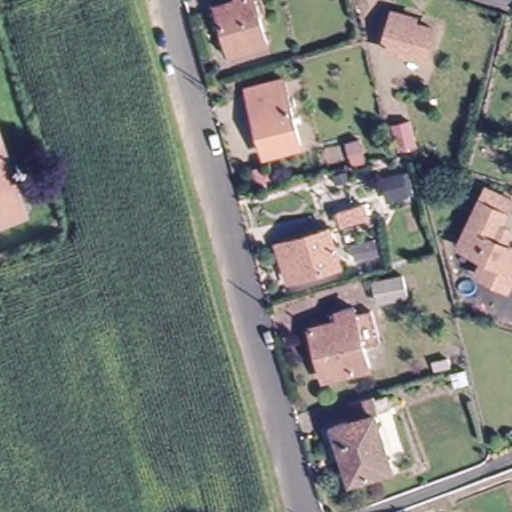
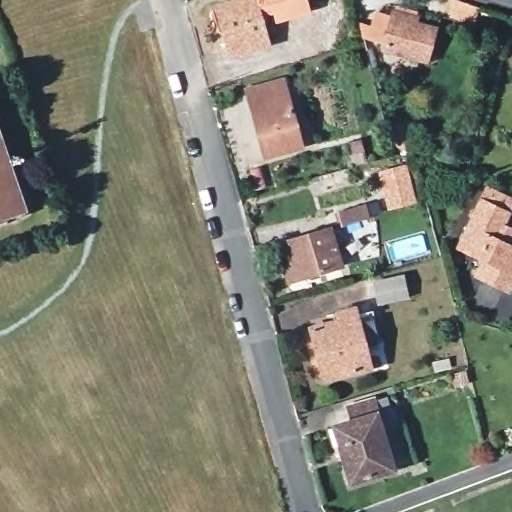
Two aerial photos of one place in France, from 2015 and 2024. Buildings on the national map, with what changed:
unchanged [(217,7),(238,1),(238,0),(255,0),(268,45),(231,56),(217,7)]
new [(262,26),(255,0),(306,0),(310,14),(262,26)]
unchanged [(385,47),(393,13),(415,18),(413,24),(433,29),(426,60),(407,55),(384,49),(385,47)]
unchanged [(265,156),(254,115),(246,89),(269,83),(282,79),(301,146),(265,156)]
unchanged [(417,146),(398,150),(392,126),(411,122),(417,146)]
unchanged [(21,208),(0,216),(0,148),(21,208)]
unchanged [(267,187),(255,190),(250,170),(261,167),(267,187)]
unchanged [(409,197),(391,201),(385,177),(403,173),(409,197)]
unchanged [(512,288),(508,295),(477,280),(485,265),(459,252),(487,193),(512,206),(512,210),(501,231),(512,236),(512,237),(505,250),(512,253),(512,288)]
unchanged [(363,205),(368,219),(342,226),(337,212),(363,205)]
unchanged [(340,265),(288,280),(278,245),(328,230),(334,247),(342,245),(345,252),(348,263),(340,265)]
unchanged [(403,274),(407,296),(377,303),(373,281),(403,274)]
unchanged [(340,321),(338,313),(354,309),(356,316),(372,312),(380,343),(364,348),(369,368),(325,379),(311,329),(340,321)]
unchanged [(450,367),(435,371),(433,363),(447,360),(450,367)]
unchanged [(451,375),(465,371),(469,384),(455,387),(451,375)]
unchanged [(370,399),(374,413),(370,414),(387,470),(346,483),(329,427),(347,421),(343,407),(370,399)]

